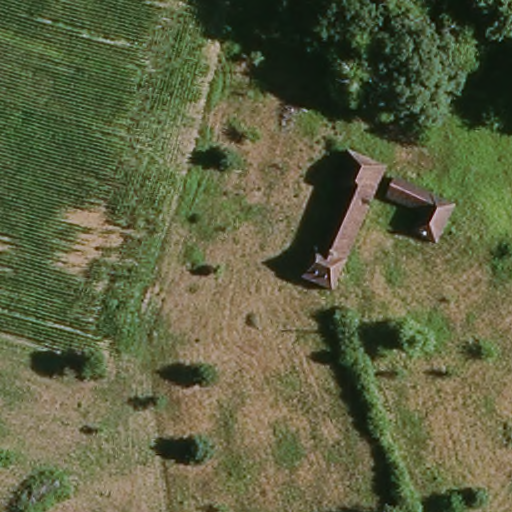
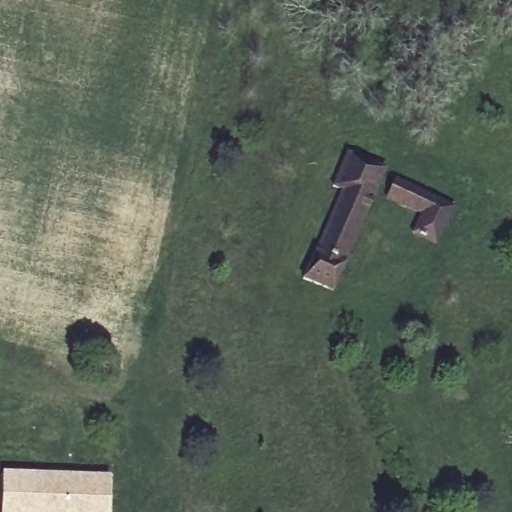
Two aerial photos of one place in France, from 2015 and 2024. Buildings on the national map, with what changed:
unchanged [(371,175),(341,292),(310,285),(330,190),(321,187),(330,156),(340,158),(373,166),(371,175)]
unchanged [(435,247),(409,236),(413,217),(384,202),(397,176),(456,207),(435,247)]
new [(108,512),(0,512),(2,472),(109,475),(108,512)]

